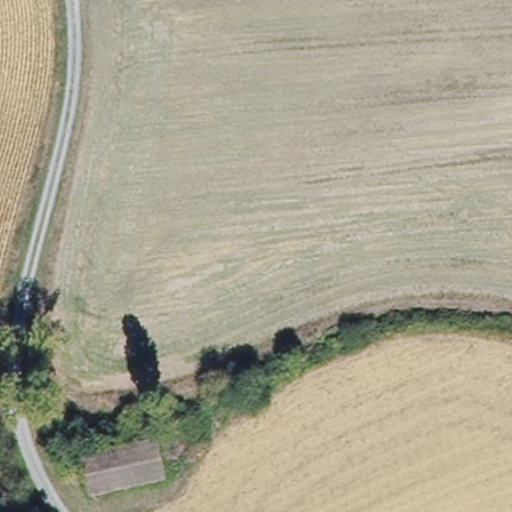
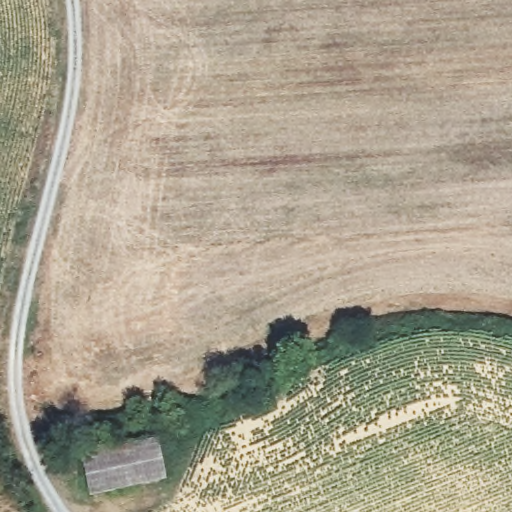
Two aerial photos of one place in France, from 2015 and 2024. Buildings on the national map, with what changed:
unchanged [(89,488),(83,444),(155,433),(162,475),(89,488)]

